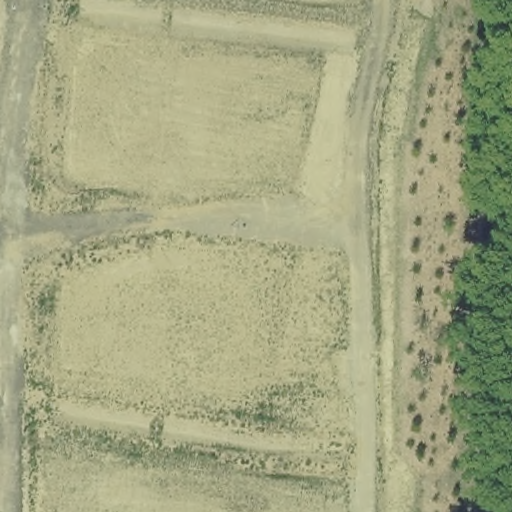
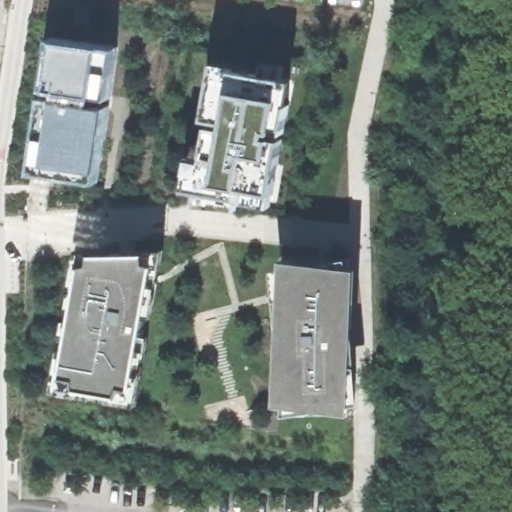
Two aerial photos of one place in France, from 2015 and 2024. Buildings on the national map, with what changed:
new [(42,96),(57,98),(57,91),(43,89),(51,38),(117,48),(110,98),(96,96),(94,104),(108,106),(97,182),(31,172),(42,96)]
new [(214,121),(229,123),(230,119),(211,114),(216,83),(227,84),(231,64),(265,70),(268,56),(290,61),(283,98),(294,101),(289,128),(273,126),(272,131),(287,134),(276,202),(243,196),(241,205),(200,201),(214,121)]
new [(60,349),(67,350),(71,324),(65,322),(77,253),(96,252),(97,255),(163,251),(161,267),(155,267),(152,278),(152,283),(158,284),(153,313),(147,312),(140,353),(146,355),(137,406),(52,391),(60,349)]
new [(282,324),(281,260),(351,259),(354,412),(285,414),(283,350),(273,350),(273,325),(282,324)]

